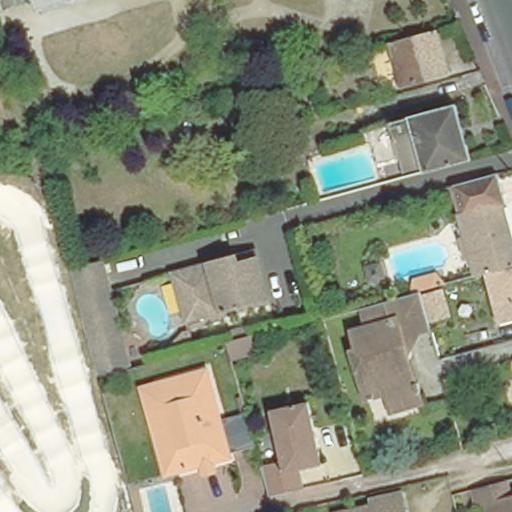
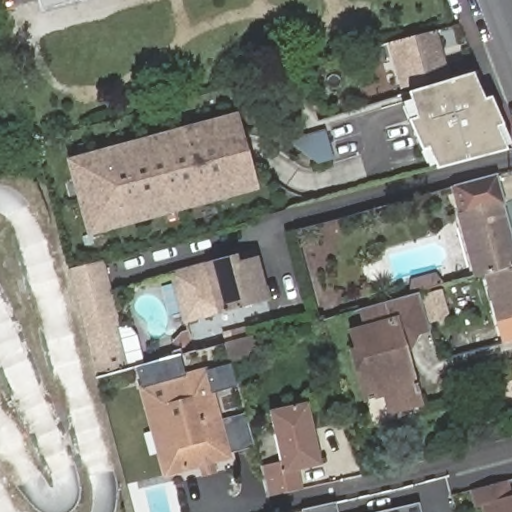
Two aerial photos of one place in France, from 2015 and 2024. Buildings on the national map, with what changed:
unchanged [(41,0),(71,0),(43,8),(41,0)]
unchanged [(438,78),(395,90),(384,46),(427,35),(438,78)]
new [(439,167),(429,146),(423,149),(410,121),(417,118),(409,92),(472,74),(485,99),(490,98),(503,126),(497,128),(506,150),(439,167)]
demolished [(396,183),(383,129),(468,104),(482,160),(396,183)]
new [(258,191),(89,236),(66,159),(237,114),(258,191)]
unchanged [(312,130),(314,139),(300,142),(298,134),(312,130)]
unchanged [(512,266),(486,273),(480,275),(455,185),(498,173),(512,229),(512,266)]
unchanged [(182,321),(169,272),(245,253),(251,252),(253,260),(263,299),(182,321)]
unchanged [(103,259),(128,369),(97,378),(73,267),(103,259)]
unchanged [(486,273),(512,266),(512,320),(499,323),(486,273)]
unchanged [(358,357),(353,337),(367,333),(362,312),(368,310),(376,308),(401,301),(408,299),(417,297),(426,295),(436,333),(424,336),(410,368),(415,375),(418,394),(423,393),(425,402),(421,403),(423,411),(392,419),(387,401),(367,407),(358,377),(353,359),(358,357)]
unchanged [(259,359),(231,367),(225,348),(253,340),(259,359)]
unchanged [(212,476),(209,466),(191,472),(165,384),(211,371),(227,422),(253,415),(262,446),(237,454),(238,458),(221,463),(223,472),(212,476)]
unchanged [(191,472),(171,477),(146,389),(165,384),(191,472)]
unchanged [(268,494),(261,468),(276,464),(264,410),(302,401),(318,462),(297,468),(301,486),(268,494)]
unchanged [(512,512),(485,512),(483,506),(477,507),(473,493),(480,491),(508,484),(511,499),(512,498),(512,512)]
demolished [(370,505),(369,498),(403,490),(409,512),(344,512),(370,505)]
new [(301,511),(301,510),(336,502),(338,512),(297,512),(301,511)]
new [(419,503),(422,512),(377,512),(419,503)]

